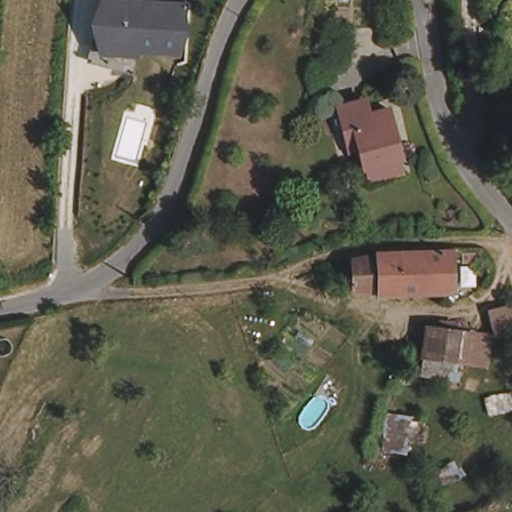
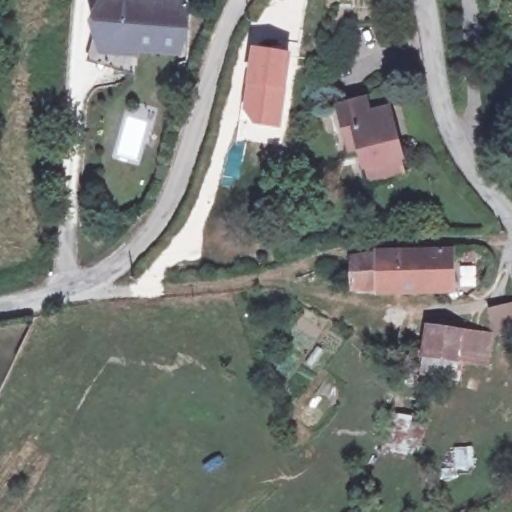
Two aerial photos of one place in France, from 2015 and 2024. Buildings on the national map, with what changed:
unchanged [(180,7),(175,54),(98,46),(94,28),(96,15),(103,0),(108,0),(180,7)]
new [(251,46),(292,51),(282,130),(252,125),(243,114),(242,114),(251,46)]
unchanged [(364,146),(351,149),(347,128),(340,102),(370,94),(373,109),(393,104),(405,153),(408,170),(371,178),(367,162),(364,146)]
unchanged [(407,247),(442,245),(450,245),(453,284),(357,287),(355,255),(358,252),(376,250),(407,247)]
unchanged [(512,331),(507,332),(505,304),(512,303),(512,331)]
unchanged [(436,363),(436,353),(413,353),(415,328),(423,328),(423,322),(453,324),(473,326),(472,348),(451,347),(450,363),(436,363)]

